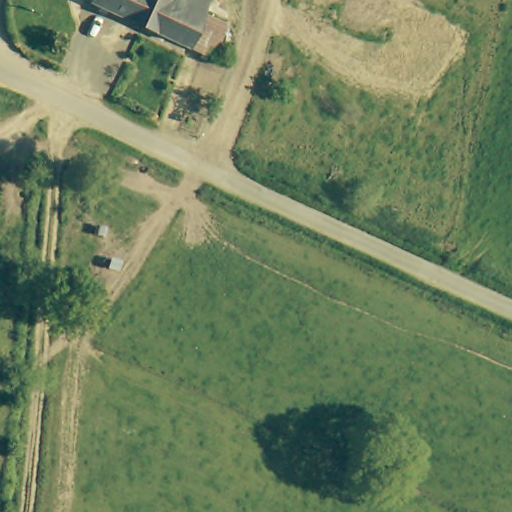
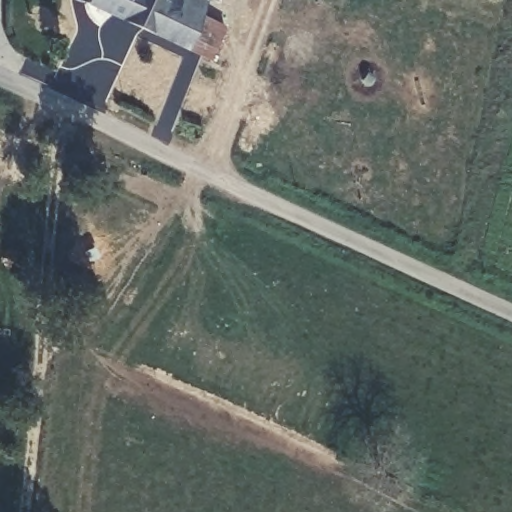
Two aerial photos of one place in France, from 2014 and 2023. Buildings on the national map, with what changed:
unchanged [(201,10),(227,23),(214,53),(212,56),(89,0),(206,0),(201,10)]

